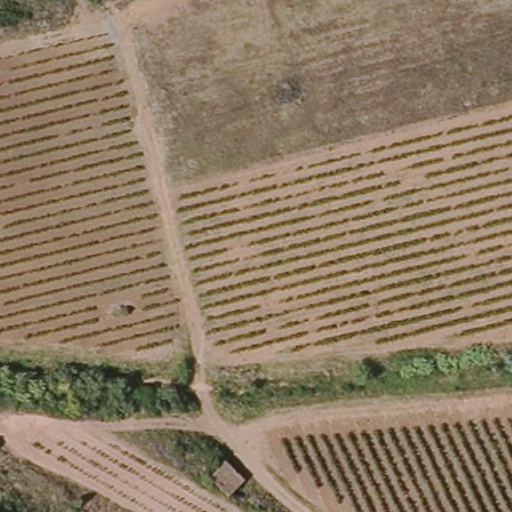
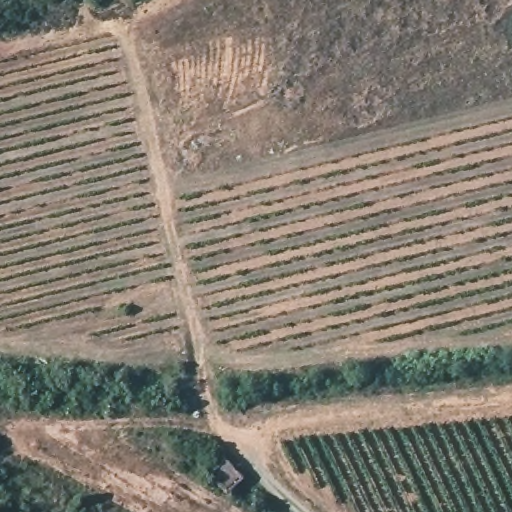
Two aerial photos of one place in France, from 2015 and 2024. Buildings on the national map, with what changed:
unchanged [(247,477),(241,482),(233,491),(215,472),(229,457),(247,477)]

